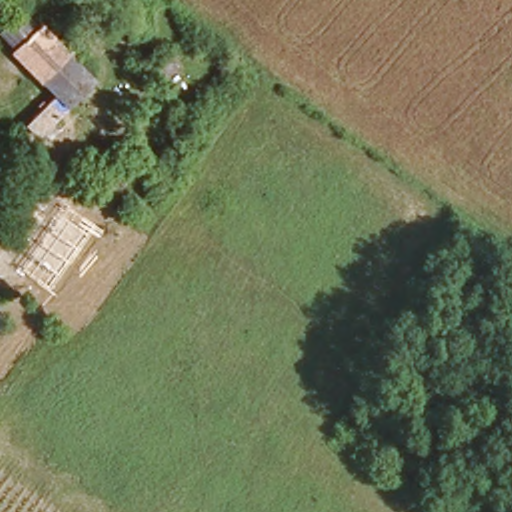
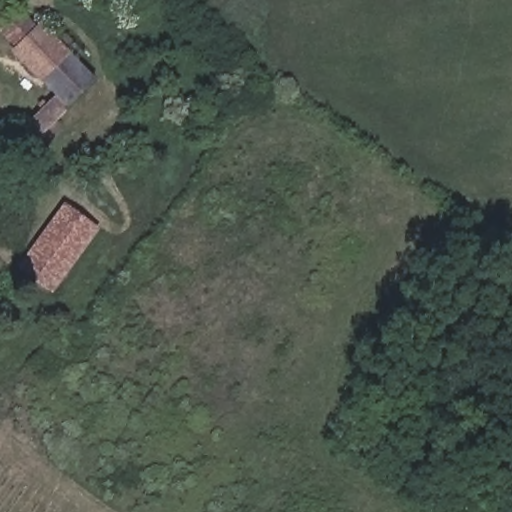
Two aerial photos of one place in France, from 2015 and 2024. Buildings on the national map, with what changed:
unchanged [(40,138),(28,125),(57,95),(11,53),(39,24),(97,75),(40,138)]
new [(52,293),(17,267),(65,202),(101,228),(52,293)]

